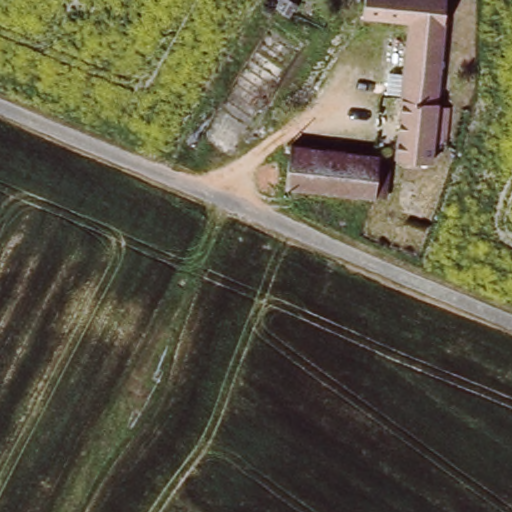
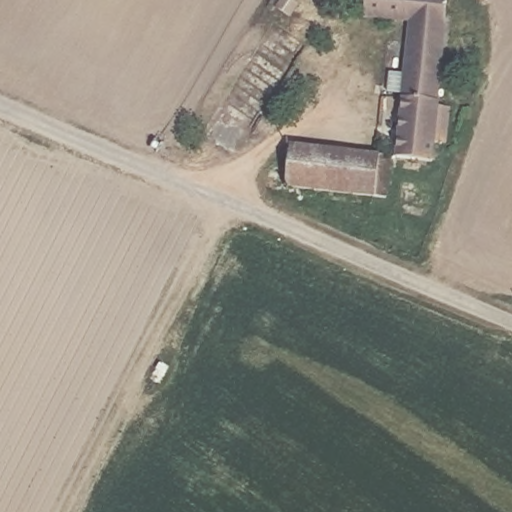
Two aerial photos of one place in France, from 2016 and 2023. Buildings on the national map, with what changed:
unchanged [(447,48),(446,60),(438,59),(435,100),(448,101),(442,159),(395,155),(408,21),(360,16),(362,0),(445,0),(440,47),(447,48)]
unchanged [(293,144),(389,152),(385,194),(289,186),(293,144)]

